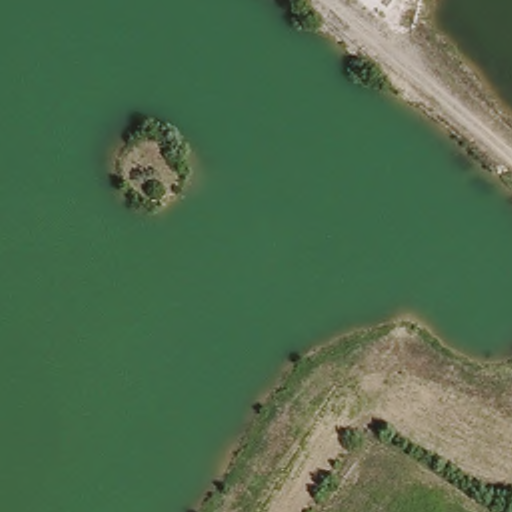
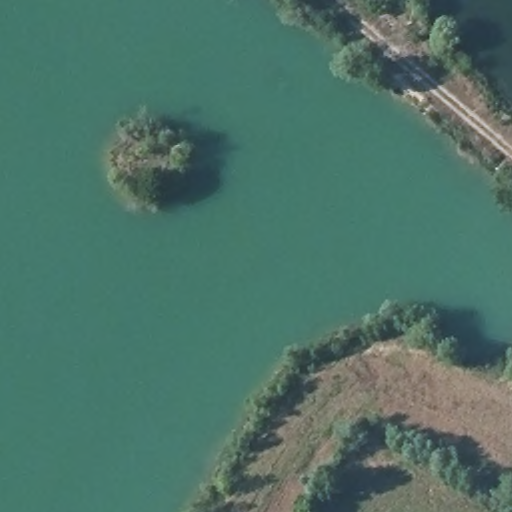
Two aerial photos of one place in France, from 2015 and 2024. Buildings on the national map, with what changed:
[]

